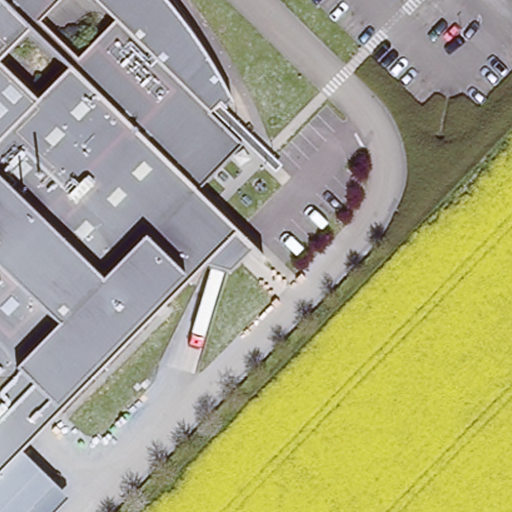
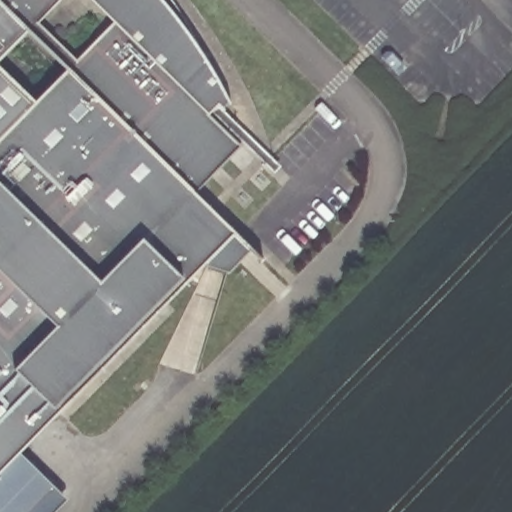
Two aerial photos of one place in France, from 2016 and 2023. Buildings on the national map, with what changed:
unchanged [(165,3),(193,40),(218,78),(231,100),(225,107),(216,100),(206,109),(240,143),(195,191),(248,245),(225,274),(204,261),(21,449),(68,497),(55,512),(0,512),(0,64),(35,99),(68,66),(27,27),(0,56),(0,0),(59,0),(36,22),(74,58),(115,22),(93,0),(163,0),(165,3)]

